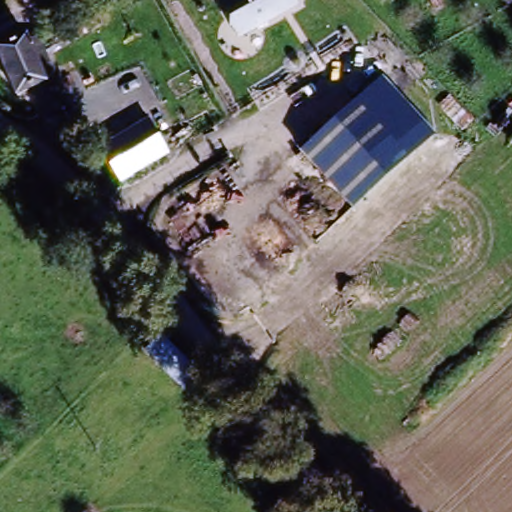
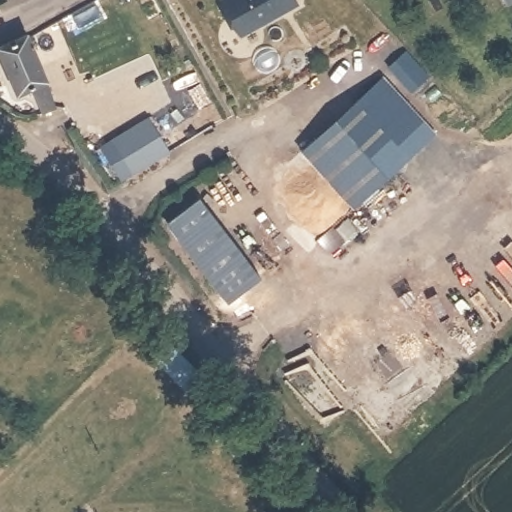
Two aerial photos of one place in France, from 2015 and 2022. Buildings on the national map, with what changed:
unchanged [(296,0),(299,5),(238,37),(219,1),(221,0),(296,0)]
unchanged [(503,0),(512,0),(512,2),(506,5),(503,0)]
unchanged [(31,61),(48,100),(37,105),(30,84),(11,90),(0,65),(0,42),(23,30),(29,37),(34,35),(45,55),(31,61)]
unchanged [(382,75),(437,135),(352,210),(300,152),(382,75)]
unchanged [(171,153),(121,181),(100,146),(148,119),(171,153)]
new [(263,285),(231,311),(169,232),(201,206),(263,285)]
unchanged [(209,382),(189,399),(152,356),(173,340),(209,382)]

